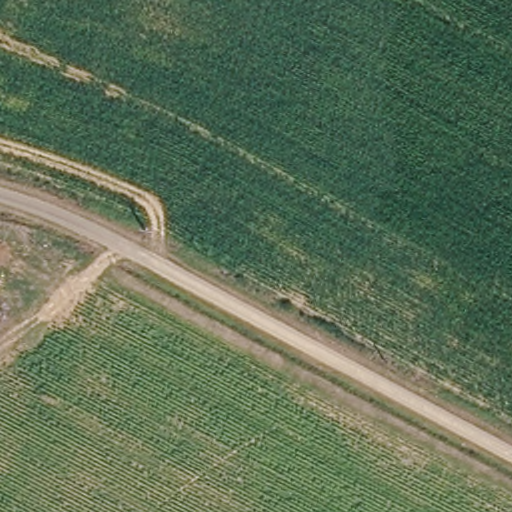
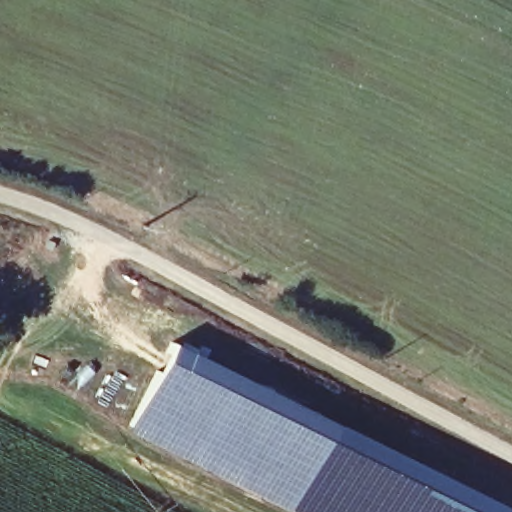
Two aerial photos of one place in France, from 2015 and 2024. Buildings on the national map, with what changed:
new [(289,512),(127,430),(170,342),(333,424),(289,512)]
new [(499,512),(291,512),(289,512),(333,424),(501,508),(499,512)]

